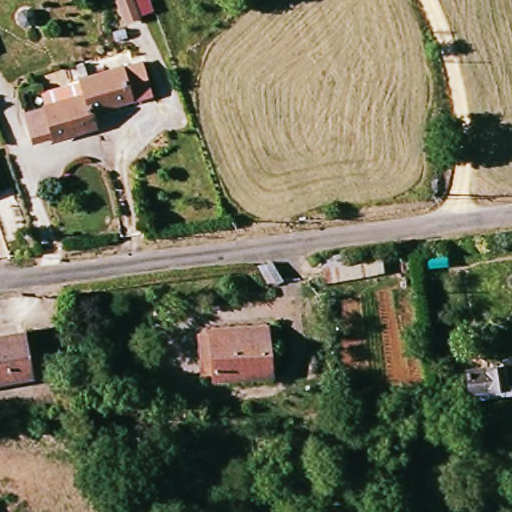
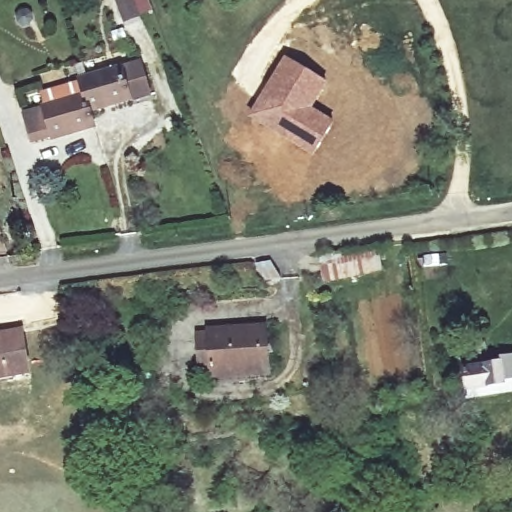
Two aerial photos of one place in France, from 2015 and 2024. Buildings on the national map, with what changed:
new [(119,13),(114,0),(132,0),(135,7),(137,16),(122,21),(119,13)]
new [(284,55),(327,82),(312,107),(334,121),(313,154),(248,115),(284,55)]
unchanged [(137,56),(147,88),(86,108),(81,94),(75,76),(137,56)]
unchanged [(90,125),(60,134),(32,142),(24,115),(81,94),(86,108),(90,125)]
new [(342,256),(379,248),(384,270),(325,283),(318,257),(341,252),(342,256)]
unchanged [(268,369),(210,376),(203,329),(262,322),(268,369)]
unchanged [(27,376),(0,380),(0,335),(20,332),(27,376)]
unchanged [(507,353),(512,352),(512,394),(474,400),(469,365),(507,359),(507,353)]

